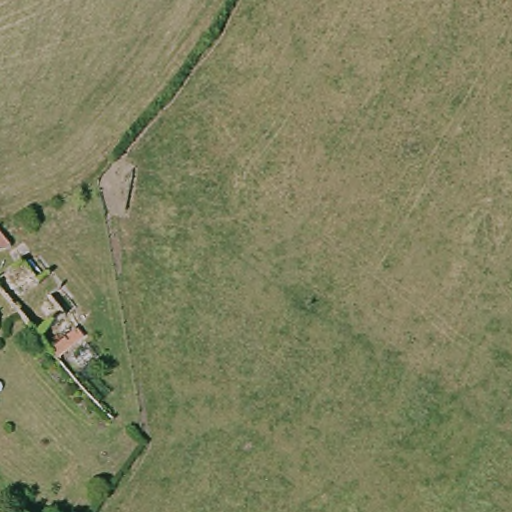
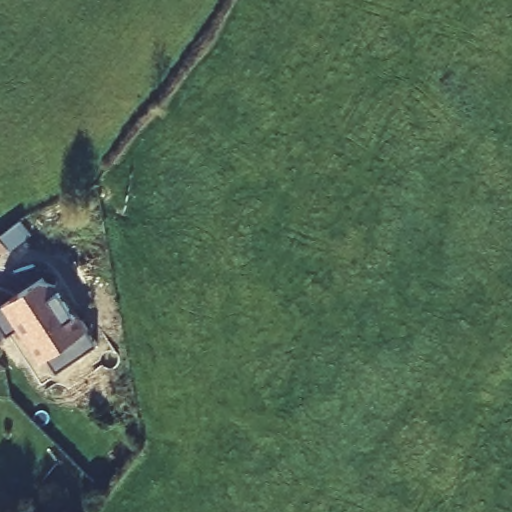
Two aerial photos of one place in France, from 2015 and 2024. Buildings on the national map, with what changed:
new [(9,221),(23,217),(32,244),(8,250),(0,250),(0,233),(11,227),(9,221)]
demolished [(48,270),(82,311),(70,321),(89,341),(57,360),(12,308),(41,292),(35,281),(48,270)]
new [(91,326),(88,328),(97,341),(58,370),(47,355),(41,359),(18,325),(7,332),(0,321),(0,306),(45,275),(59,280),(91,326)]

